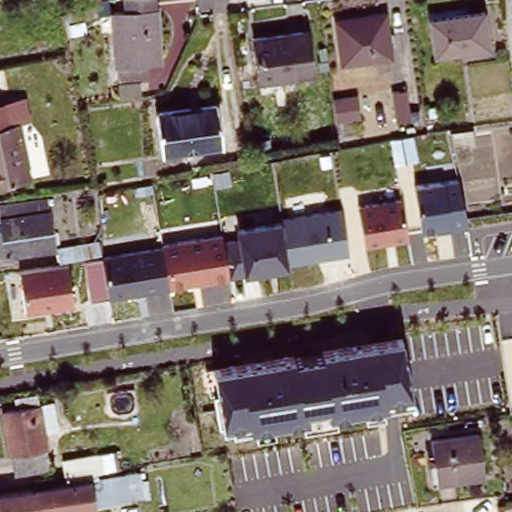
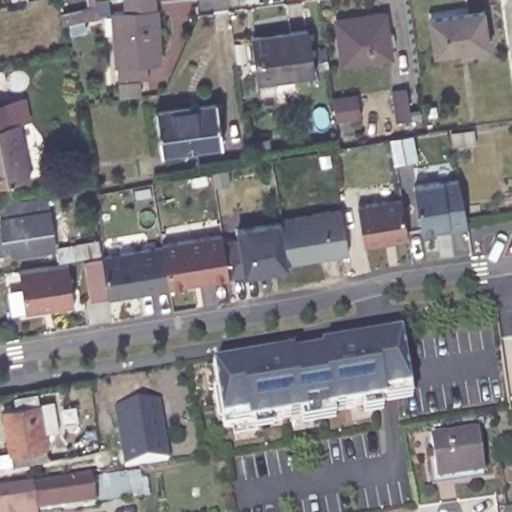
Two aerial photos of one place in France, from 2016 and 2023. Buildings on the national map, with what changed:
unchanged [(143,66),(143,81),(112,82),(107,14),(152,11),(155,65),(143,66)]
unchanged [(435,56),(430,20),(483,12),(488,48),(435,56)]
unchanged [(342,65),(336,22),(384,15),(390,58),(342,65)]
unchanged [(255,78),(248,35),(302,26),(307,70),(255,78)]
unchanged [(395,122),(392,93),(407,91),(410,120),(395,122)]
unchanged [(28,94),(32,122),(19,124),(0,128),(0,99),(28,94)]
unchanged [(157,149),(150,107),(211,99),(217,140),(157,149)]
unchanged [(0,185),(0,128),(19,124),(30,180),(0,185)]
unchanged [(470,224),(437,230),(437,226),(422,229),(415,185),(460,177),(470,224)]
unchanged [(400,196),(407,240),(366,247),(359,204),(400,196)]
unchanged [(7,261),(5,250),(0,250),(0,236),(2,235),(0,213),(47,205),(53,254),(7,261)]
unchanged [(348,253),(290,263),(291,269),(242,276),(237,232),(284,223),(282,217),(340,208),(348,253)]
unchanged [(230,279),(110,298),(103,256),(162,246),(161,241),(220,232),(230,279)]
unchanged [(75,307),(24,313),(17,271),(70,262),(75,307)]
unchanged [(295,355),(297,360),(322,355),(322,351),(402,339),(412,402),(384,407),(384,413),(362,417),(362,409),(335,413),(335,419),(303,424),(302,418),(272,424),(273,431),(253,433),(252,425),(220,429),(210,364),(295,355)]
unchanged [(10,470),(0,412),(0,406),(13,403),(12,393),(32,390),(45,463),(10,470)]
new [(125,467),(115,408),(160,401),(170,460),(125,467)]
unchanged [(436,480),(430,440),(478,434),(482,474),(436,480)]
demolished [(91,472),(88,453),(120,448),(124,466),(91,472)]
unchanged [(147,466),(151,491),(98,500),(95,475),(147,466)]
unchanged [(0,512),(0,490),(95,475),(98,500),(20,512),(0,512)]

